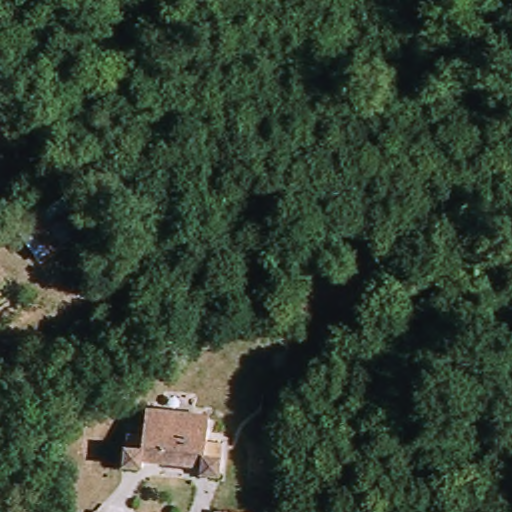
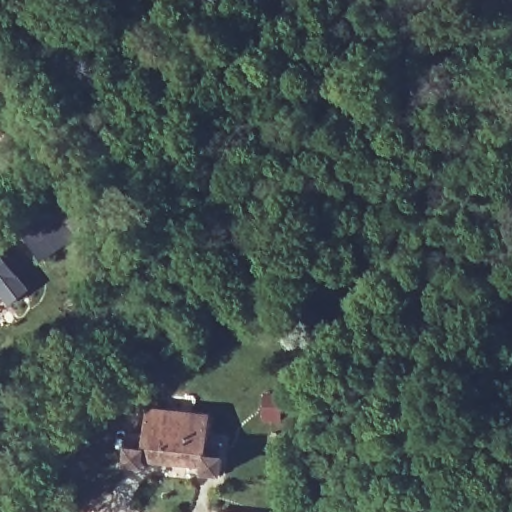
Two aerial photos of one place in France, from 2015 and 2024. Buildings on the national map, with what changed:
unchanged [(14,223),(36,205),(47,220),(67,205),(87,234),(66,249),(43,264),(14,223)]
new [(28,292),(12,304),(0,288),(0,255),(28,292)]
unchanged [(147,439),(149,414),(207,417),(205,443),(224,444),(221,474),(207,473),(206,465),(145,462),(142,469),(127,468),(130,439),(147,439)]

